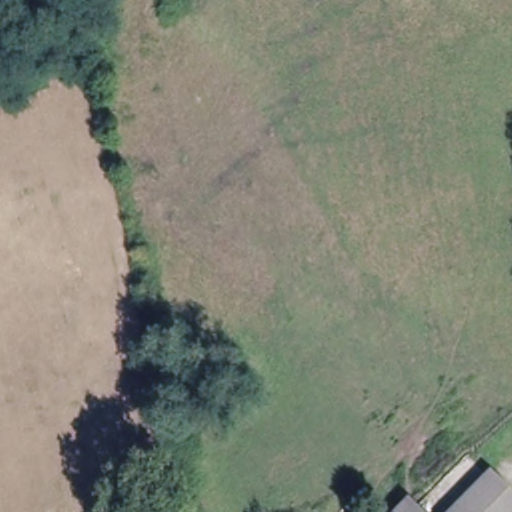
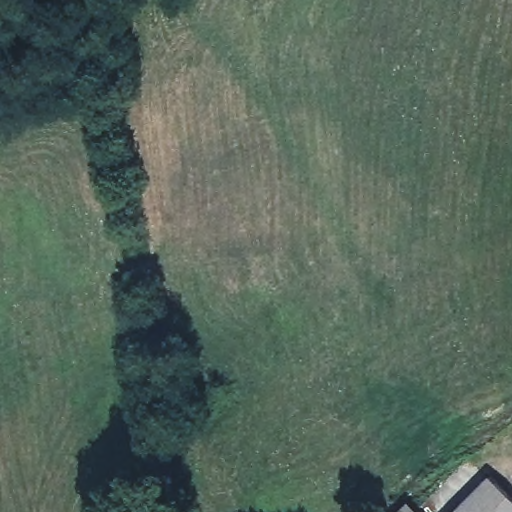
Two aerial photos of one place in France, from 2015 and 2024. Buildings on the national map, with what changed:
unchanged [(512,498),(512,512),(452,512),(493,476),(512,498)]
unchanged [(408,493),(425,512),(394,512),(391,509),(408,493)]

